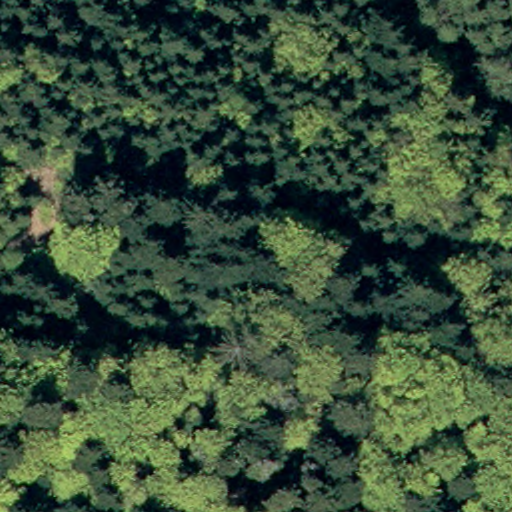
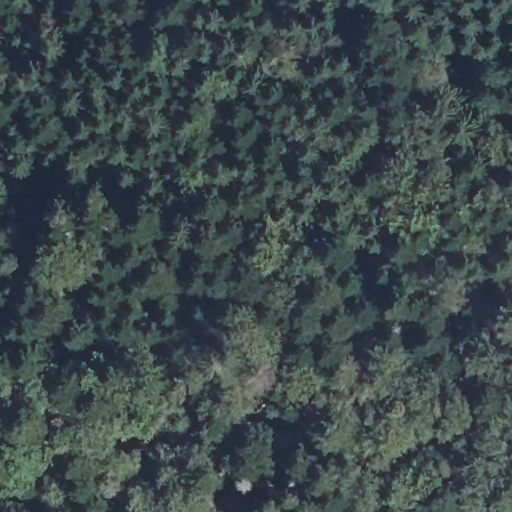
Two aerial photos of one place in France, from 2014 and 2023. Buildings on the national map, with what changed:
[]

